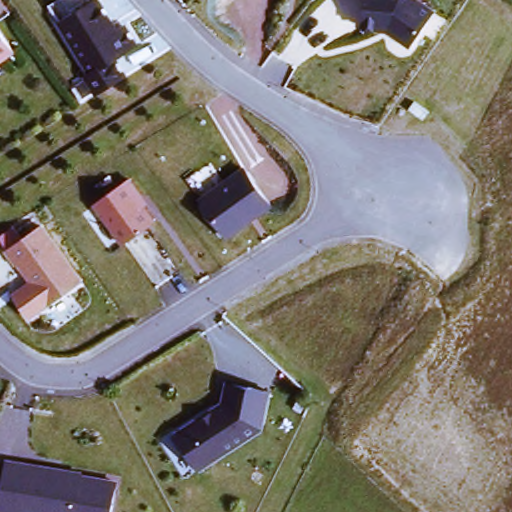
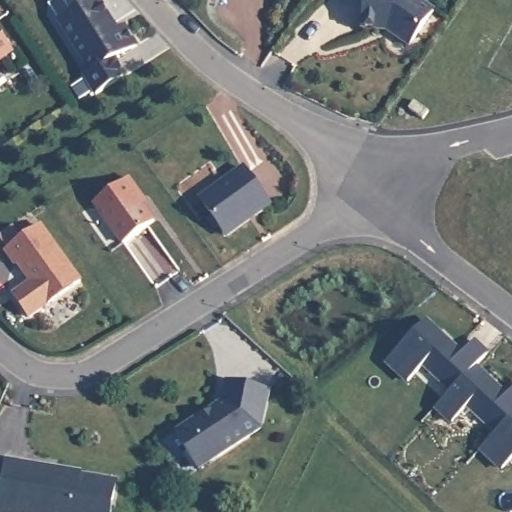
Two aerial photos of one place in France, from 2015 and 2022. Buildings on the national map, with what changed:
unchanged [(90,67),(63,24),(60,20),(78,7),(89,0),(100,0),(116,25),(122,22),(135,40),(113,56),(123,72),(95,91),(84,71),(90,67)]
unchanged [(431,10),(406,45),(382,29),(361,29),(363,0),(420,0),(431,10)]
unchanged [(15,54),(0,64),(0,32),(15,54)]
unchanged [(225,240),(196,200),(240,170),(267,209),(225,240)]
unchanged [(136,190),(133,193),(153,219),(120,245),(90,205),(125,177),(136,190)]
unchanged [(25,275),(16,262),(14,263),(5,250),(38,225),(78,277),(29,315),(13,293),(32,279),(28,274),(25,275)]
new [(480,452),(495,436),(467,410),(450,426),(435,411),(450,395),(423,367),(406,385),(385,365),(428,319),(465,354),(477,340),(490,353),(477,366),(507,395),(512,390),(512,461),(500,473),(480,452)]
unchanged [(176,436),(206,412),(227,392),(230,381),(272,389),(265,426),(198,471),(176,436)]
unchanged [(23,460),(22,470),(112,485),(109,512),(0,512),(0,487),(3,457),(23,460)]

